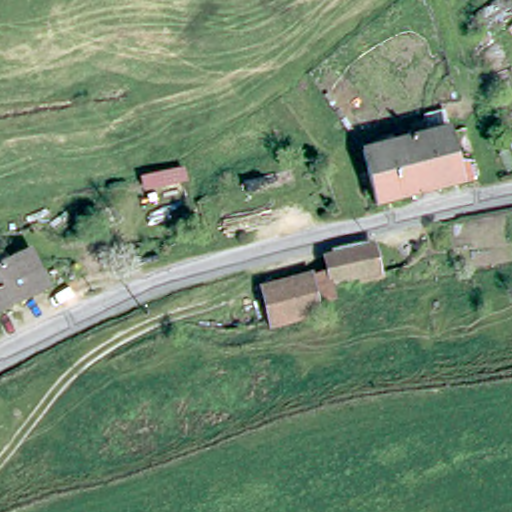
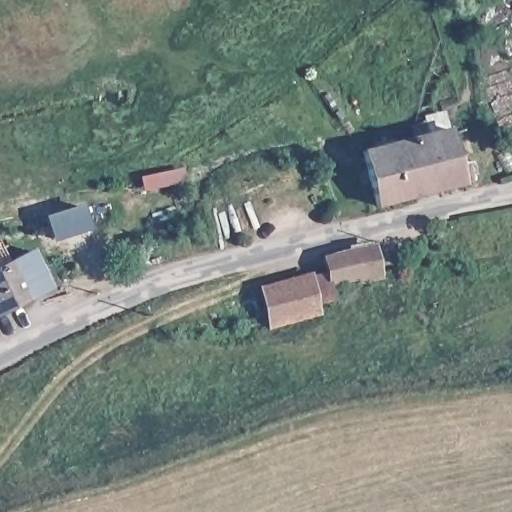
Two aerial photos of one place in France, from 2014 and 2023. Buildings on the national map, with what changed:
unchanged [(369,156),(368,154),(415,139),(411,129),(434,121),(447,161),(461,158),(468,184),(375,210),(359,158),(369,156)]
new [(84,202),(92,228),(53,241),(45,215),(84,202)]
unchanged [(0,311),(0,267),(33,253),(49,289),(0,311)]
unchanged [(267,294),(294,286),(317,279),(314,270),(314,269),(363,258),(368,281),(321,293),(324,308),(302,315),(303,320),(277,327),(267,294)]

